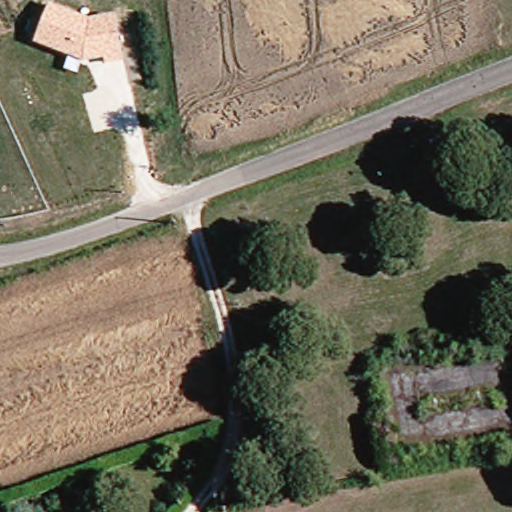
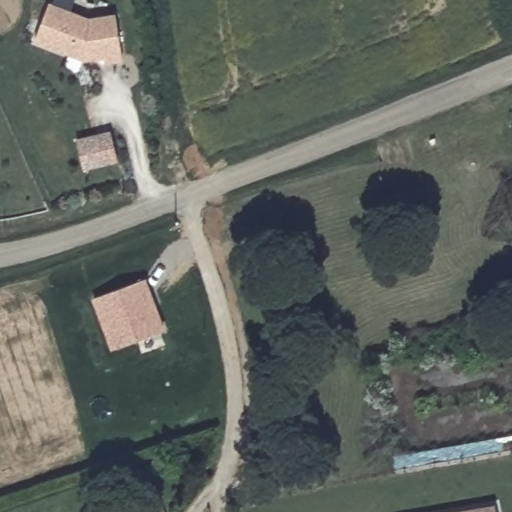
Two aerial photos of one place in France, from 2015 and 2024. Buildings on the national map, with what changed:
unchanged [(91,18),(115,11),(124,60),(105,64),(104,59),(85,61),(34,44),(52,1),(91,18)]
new [(111,135),(117,163),(84,170),(77,144),(111,135)]
new [(165,331),(111,351),(92,299),(146,279),(165,331)]
new [(492,507),(493,512),(464,512),(492,507)]

